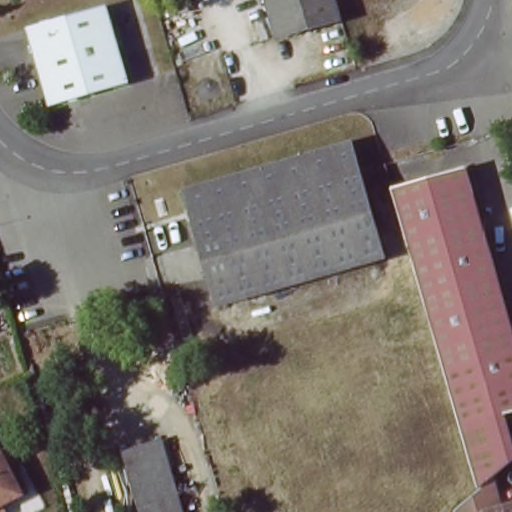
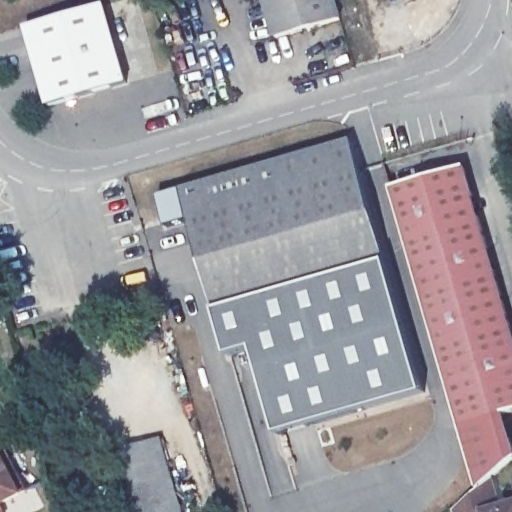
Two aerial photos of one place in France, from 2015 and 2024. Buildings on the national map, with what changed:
demolished [(127,52),(113,2),(122,0),(143,0),(156,45),(127,52)]
unchanged [(266,0),(333,0),(338,20),(277,37),(266,0)]
unchanged [(129,84),(49,105),(27,27),(108,6),(129,84)]
unchanged [(383,252),(384,258),(217,307),(214,298),(185,190),(353,144),(383,252)]
unchanged [(407,250),(390,186),(467,167),(512,335),(512,409),(502,412),(454,423),(407,250)]
new [(280,435),(256,349),(231,356),(217,307),(384,258),(428,394),(280,435)]
unchanged [(479,483),(479,482),(472,488),(454,423),(502,412),(512,451),(512,456),(479,483)]
unchanged [(180,512),(135,512),(122,460),(163,448),(180,512)]
unchanged [(3,456),(11,452),(32,494),(7,507),(10,512),(0,512),(0,450),(3,456)]
unchanged [(472,488),(479,482),(479,483),(487,512),(508,506),(505,495),(512,493),(512,512),(442,512),(472,488)]

